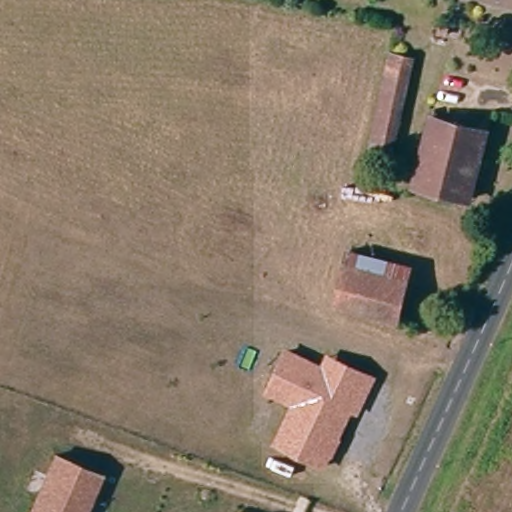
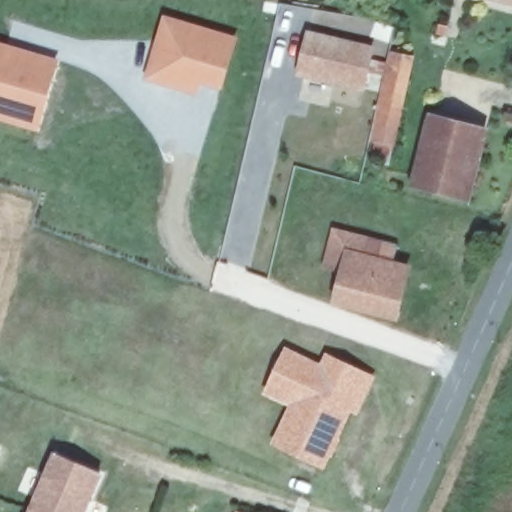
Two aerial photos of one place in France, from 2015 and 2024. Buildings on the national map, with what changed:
new [(199,95),(145,80),(164,14),(239,36),(224,90),(201,84),(199,95)]
new [(377,44),(366,92),(295,76),(307,27),(377,44)]
new [(61,59),(40,132),(0,121),(0,42),(61,59)]
unchanged [(392,74),(406,77),(393,124),(380,120),(392,74)]
unchanged [(430,115),(482,128),(466,195),(414,182),(430,115)]
new [(347,252),(343,265),(341,274),(322,267),(333,225),(400,241),(395,264),(347,252)]
unchanged [(394,321),(349,309),(333,305),(334,303),(343,265),(347,252),(409,267),(406,276),(394,321)]
unchanged [(285,350),(320,365),(325,356),(375,378),(358,415),(351,413),(325,468),(271,443),(288,404),(263,393),(285,350)]
unchanged [(33,512),(56,455),(101,473),(86,512),(33,512)]

